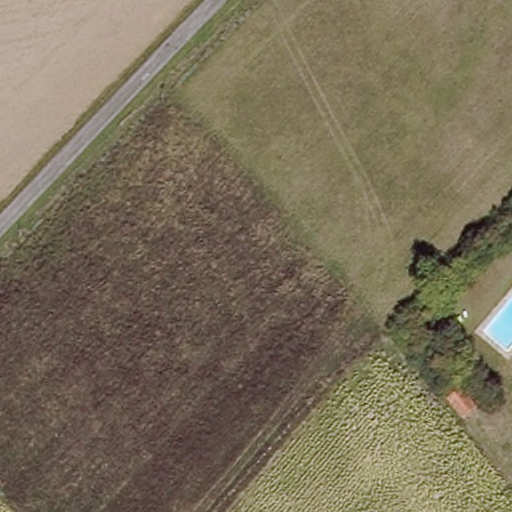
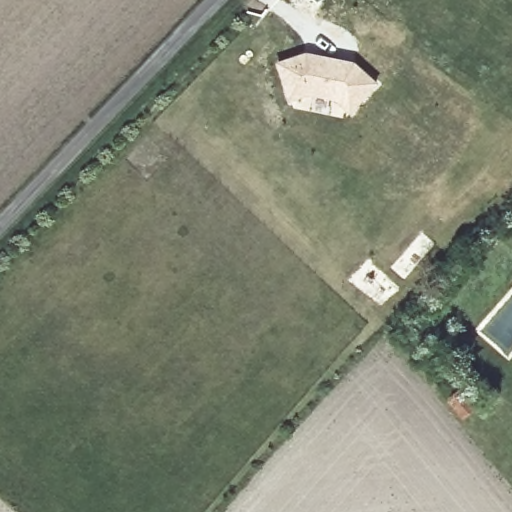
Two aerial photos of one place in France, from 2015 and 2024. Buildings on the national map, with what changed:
new [(326,57),(336,59),(355,62),(378,80),(355,110),(340,97),(312,93),(293,100),(280,65),(308,54),(326,57)]
unchanged [(470,351),(460,360),(451,350),(462,341),(470,351)]

